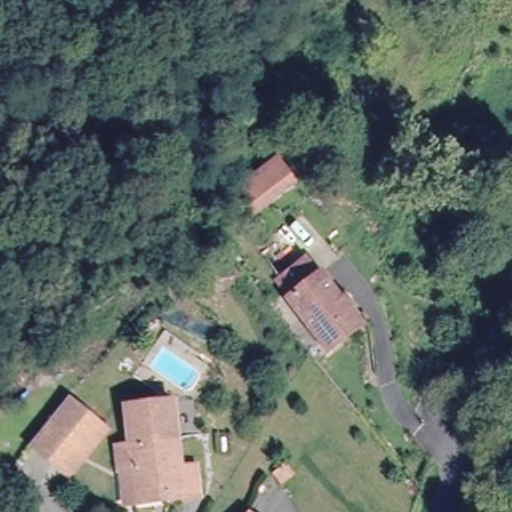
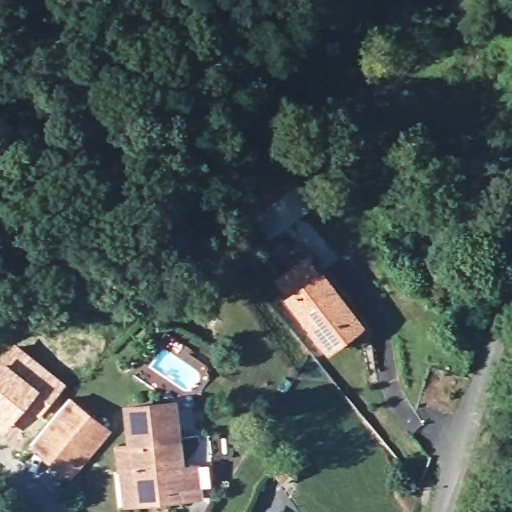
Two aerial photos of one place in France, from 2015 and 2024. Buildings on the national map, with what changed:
unchanged [(285,160),(295,174),(253,204),(243,190),(285,160)]
unchanged [(329,351),(326,347),(289,299),(293,295),(281,280),(307,260),(319,276),(321,275),(358,323),(361,326),(329,351)]
new [(66,383),(23,431),(13,424),(4,436),(0,433),(0,359),(14,341),(66,383)]
unchanged [(52,461),(31,445),(47,425),(69,398),(108,430),(85,457),(70,476),(52,461)]
unchanged [(125,472),(122,448),(137,446),(132,407),(179,402),(186,468),(201,466),(205,496),(190,497),(189,493),(166,496),(166,500),(143,503),(129,505),(125,472)]

